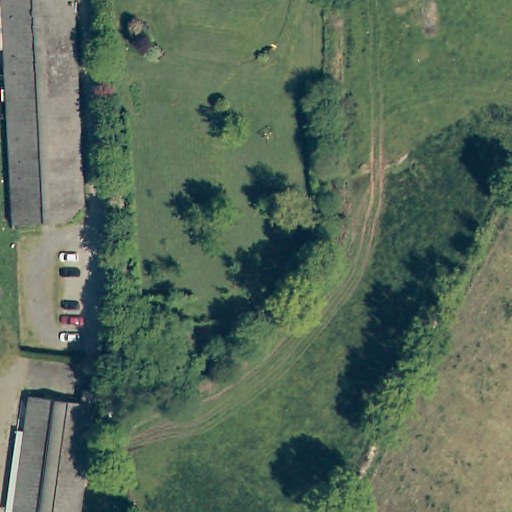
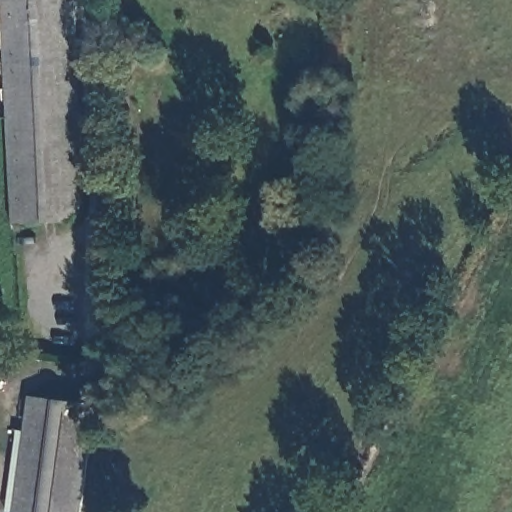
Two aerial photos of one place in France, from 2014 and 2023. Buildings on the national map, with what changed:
unchanged [(4,122),(0,45),(0,0),(70,0),(76,117),(4,122)]
unchanged [(76,117),(80,207),(69,225),(9,227),(4,122),(76,117)]
unchanged [(25,401),(77,408),(79,393),(92,395),(91,410),(77,512),(11,512),(25,401)]

